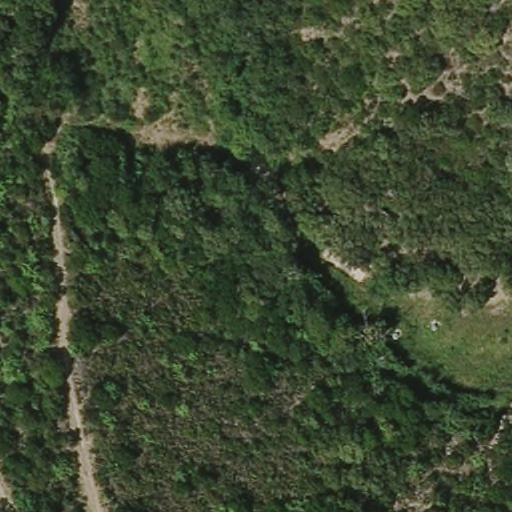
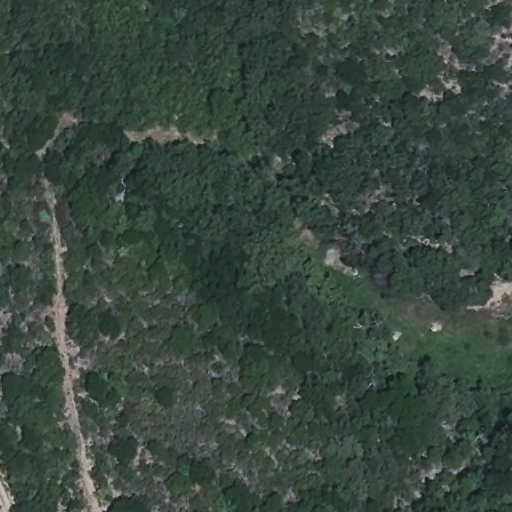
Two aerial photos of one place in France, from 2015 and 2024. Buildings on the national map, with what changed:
[]

